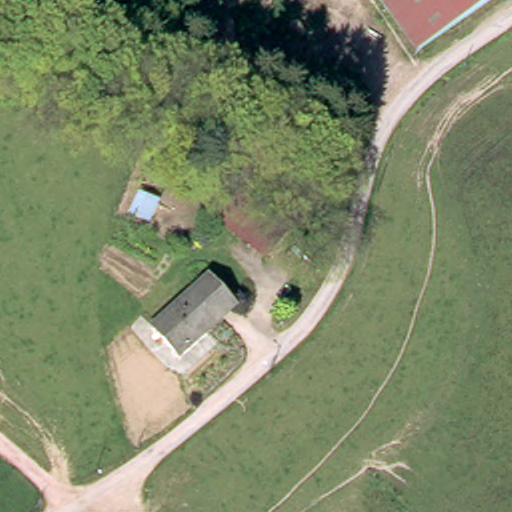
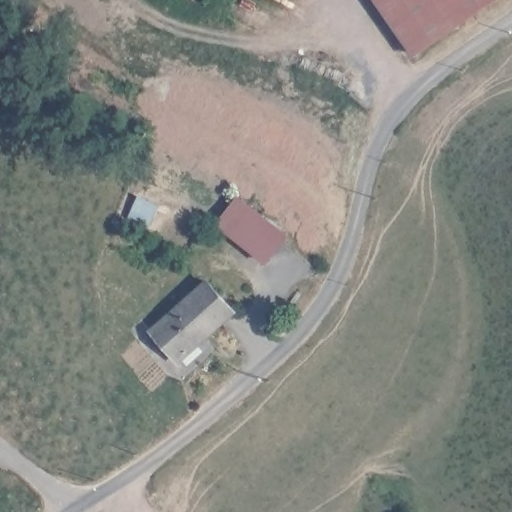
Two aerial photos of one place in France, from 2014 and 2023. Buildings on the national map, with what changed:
unchanged [(411,45),(383,0),(483,0),(411,45)]
new [(238,197),(287,235),(266,261),(218,224),(238,197)]
new [(141,198),(157,206),(149,225),(133,216),(141,198)]
unchanged [(204,276),(231,307),(175,357),(147,326),(204,276)]

